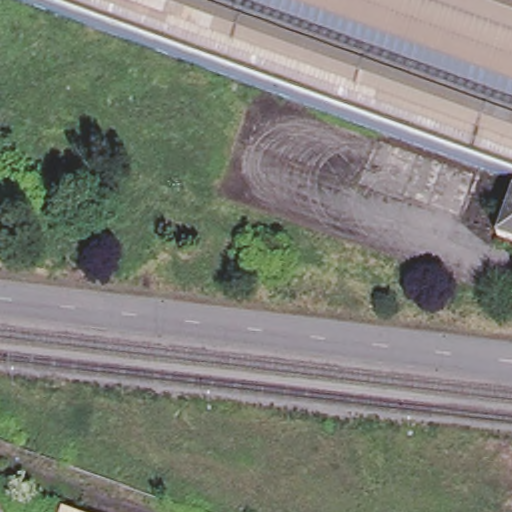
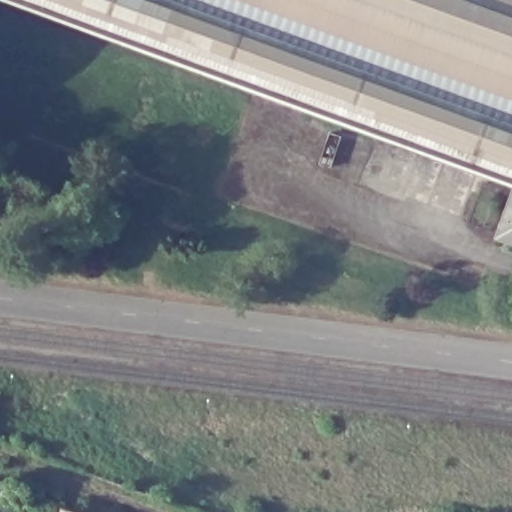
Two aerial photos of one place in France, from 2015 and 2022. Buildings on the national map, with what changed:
unchanged [(23,0),(512,0),(512,180),(23,0)]
unchanged [(497,233),(512,186),(512,239),(497,233)]
unchanged [(77,512),(62,512),(64,507),(77,512)]

